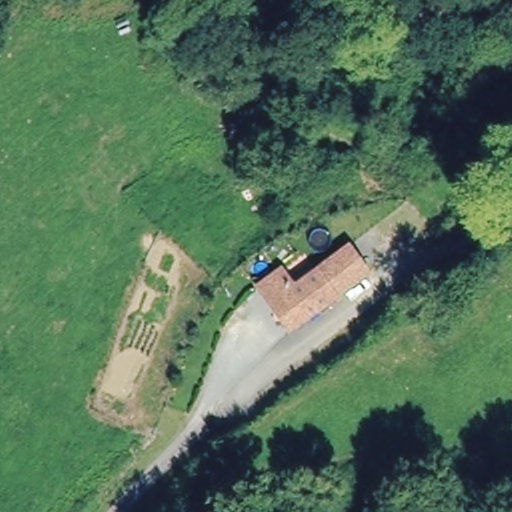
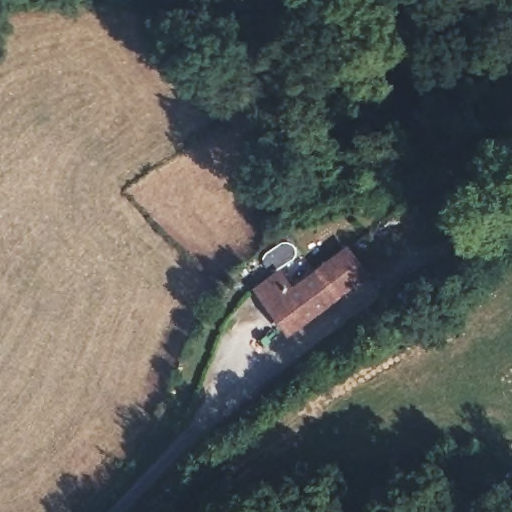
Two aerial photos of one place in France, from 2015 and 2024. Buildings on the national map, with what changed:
unchanged [(346,249),(364,275),(330,298),(310,275),(346,249)]
unchanged [(287,328),(266,300),(256,286),(278,270),(288,284),(291,288),(310,275),(330,298),(287,328)]

